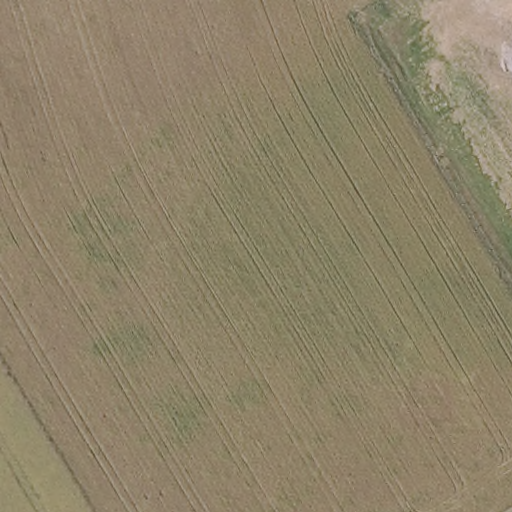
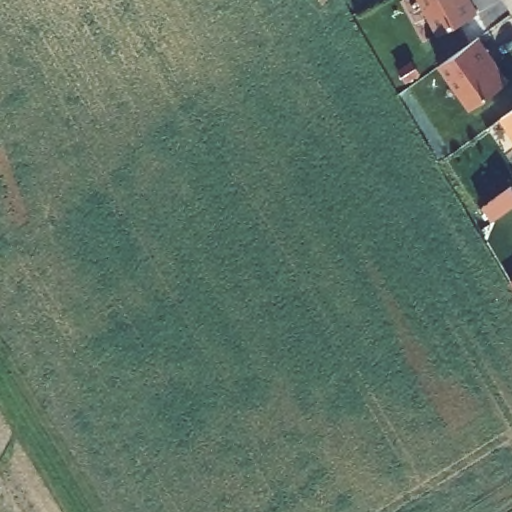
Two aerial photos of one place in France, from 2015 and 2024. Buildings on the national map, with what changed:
new [(419,0),(471,0),(479,13),(438,35),(419,0)]
new [(461,45),(481,35),(511,78),(471,110),(439,64),(461,45)]
new [(512,110),(512,136),(500,119),(512,110)]

